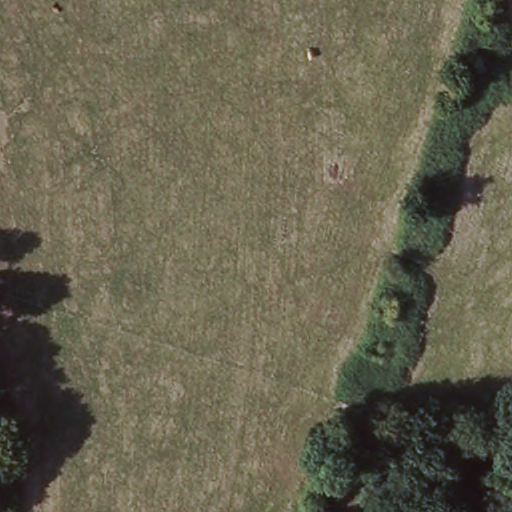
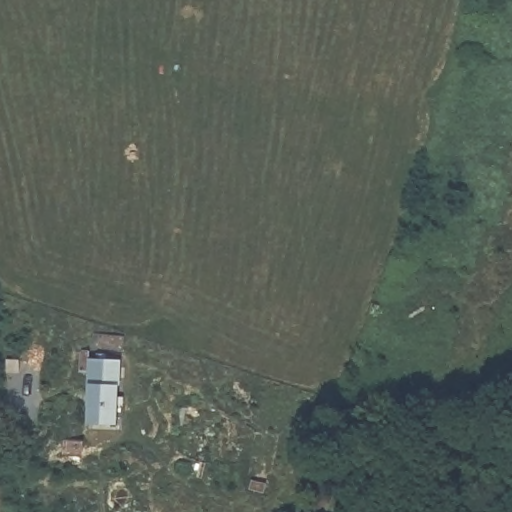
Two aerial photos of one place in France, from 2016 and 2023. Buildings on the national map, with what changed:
new [(94,358),(120,359),(117,426),(91,425),(94,358)]

